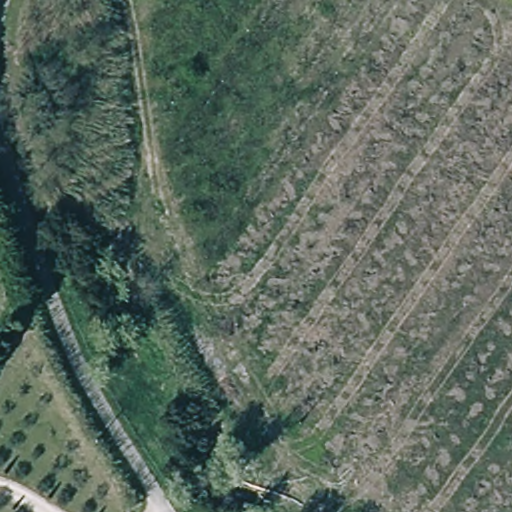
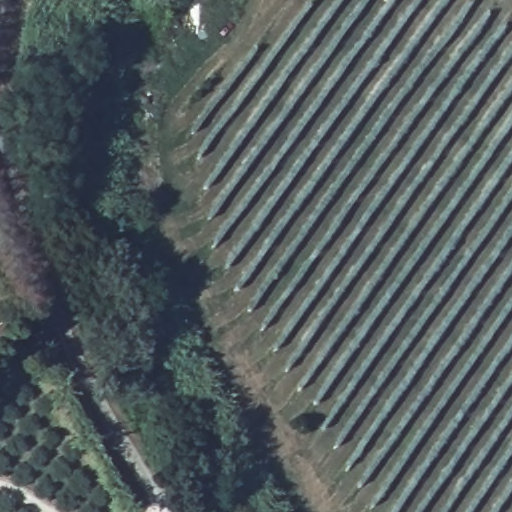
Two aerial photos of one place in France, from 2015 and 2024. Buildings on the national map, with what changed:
[]

